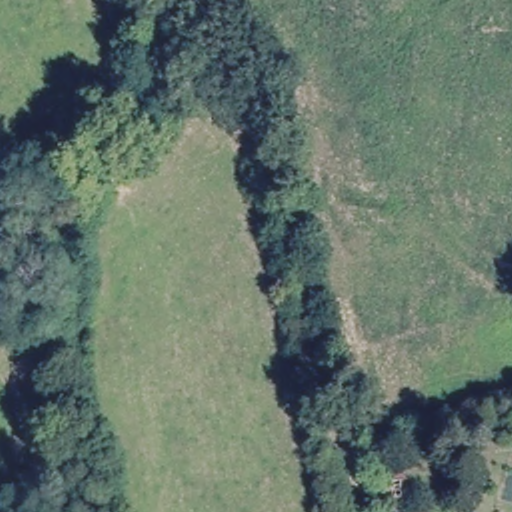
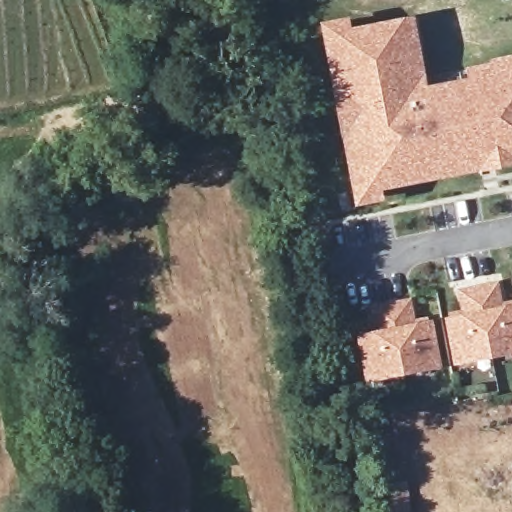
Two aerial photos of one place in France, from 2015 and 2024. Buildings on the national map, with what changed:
new [(356,191),(348,149),(359,147),(356,132),(345,135),(341,114),(342,112),(340,112),(336,89),(347,87),(344,72),(333,74),(326,36),(324,25),(347,21),(349,32),(378,26),(411,19),(413,29),(424,90),(471,81),(469,71),(494,66),(493,62),(512,58),(512,161),(493,165),(459,172),(458,161),(438,164),(440,175),(420,179),(378,187),(379,197),(358,202),(356,191)]
new [(494,284),(500,310),(512,307),(512,348),(489,353),(477,287),(494,284)]
new [(464,317),(458,292),(477,287),(489,353),(455,360),(448,321),(464,317)]
new [(408,301),(413,327),(430,323),(438,363),(402,370),(389,305),(408,301)]
new [(377,333),(372,307),(389,305),(402,370),(368,377),(360,337),(377,333)]
unchanged [(385,512),(383,484),(403,481),(406,512),(385,512)]

